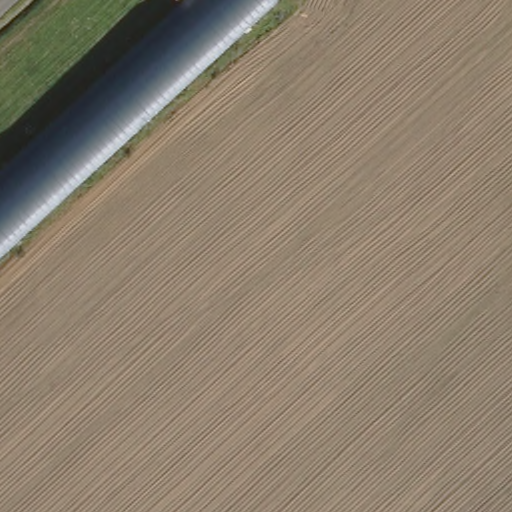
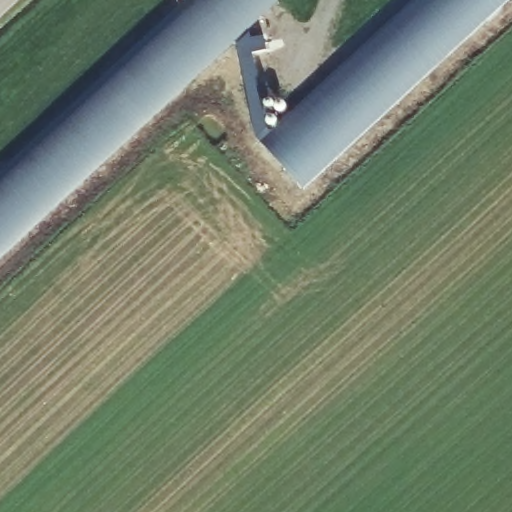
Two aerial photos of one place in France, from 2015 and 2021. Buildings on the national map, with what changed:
unchanged [(0,252),(0,166),(179,0),(272,0),(0,252)]
new [(415,0),(507,0),(302,190),(261,140),(270,133),(415,0)]
new [(234,35),(247,24),(250,39),(262,35),(267,50),(252,54),(266,129),(270,133),(261,140),(234,35)]

